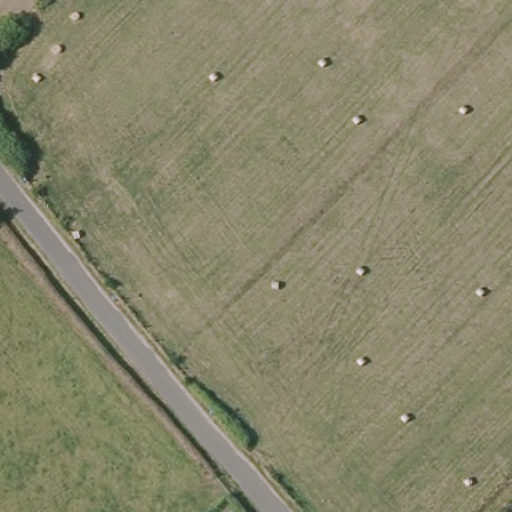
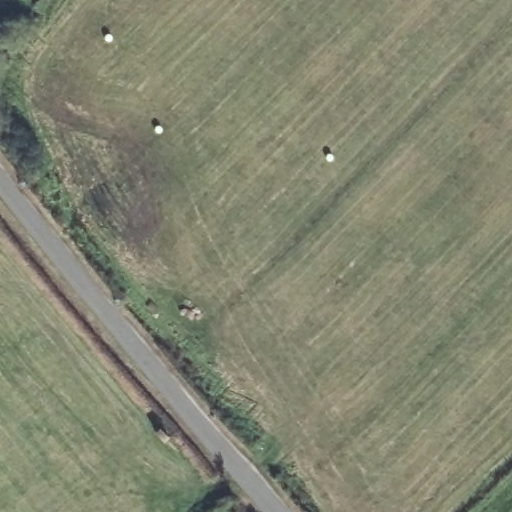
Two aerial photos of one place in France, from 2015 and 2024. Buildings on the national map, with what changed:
[]

